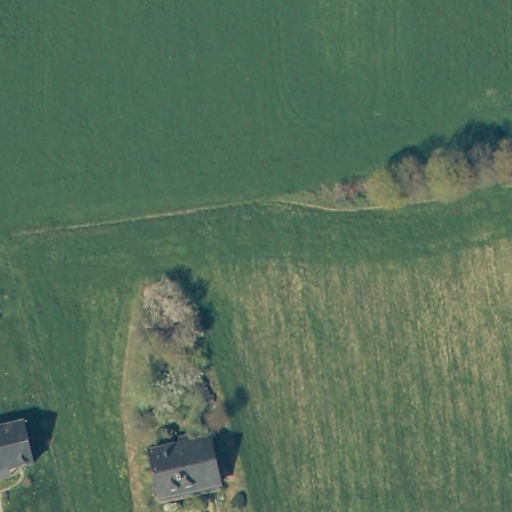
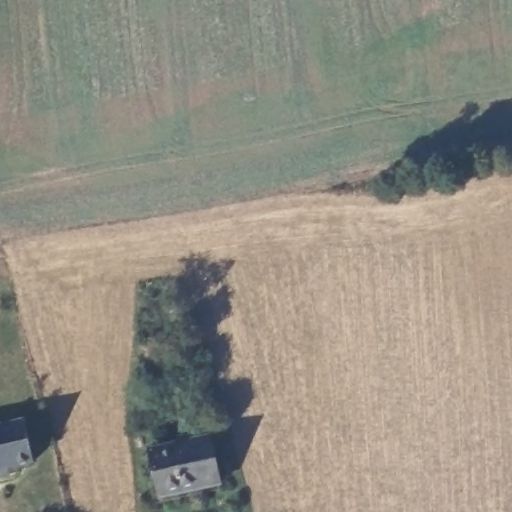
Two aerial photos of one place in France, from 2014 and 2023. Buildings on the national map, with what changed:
unchanged [(33,463),(8,469),(9,476),(0,478),(0,429),(24,424),(33,463)]
unchanged [(157,500),(148,452),(206,440),(216,487),(190,493),(157,500)]

